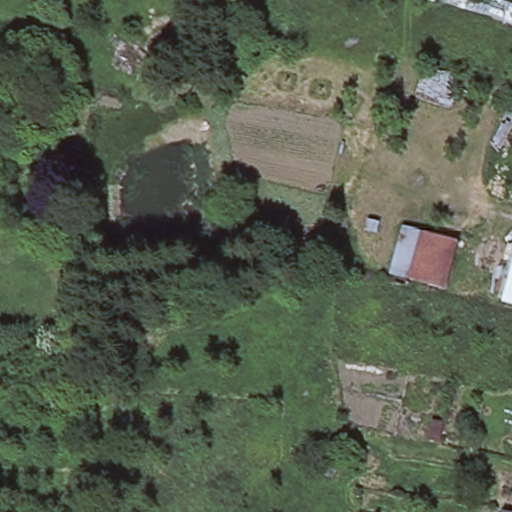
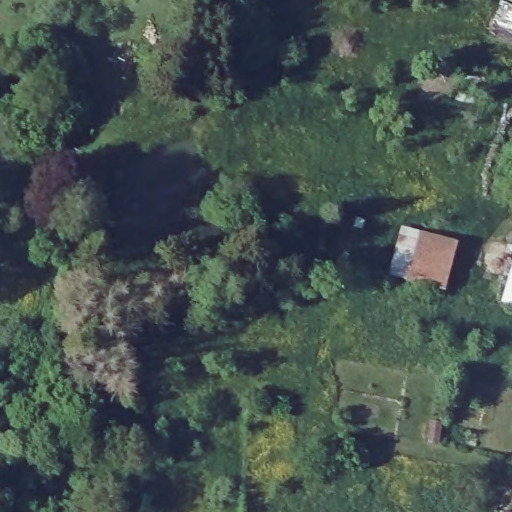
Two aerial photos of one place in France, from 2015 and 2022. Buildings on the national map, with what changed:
unchanged [(398,227),(455,241),(440,291),(385,276),(398,227)]
unchanged [(512,254),(512,308),(498,305),(512,254)]
unchanged [(331,465),(337,470),(330,477),(325,476),(322,470),(326,465),(331,465)]

